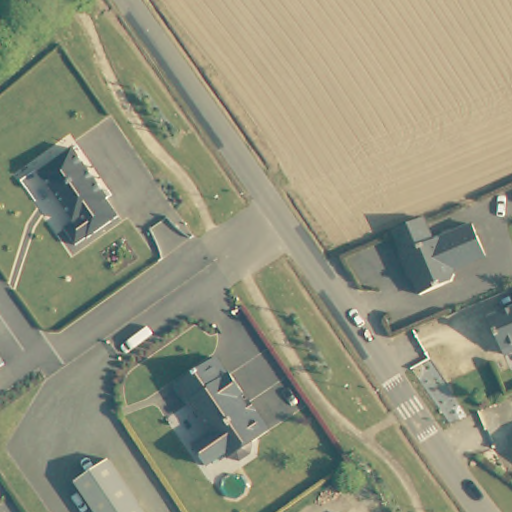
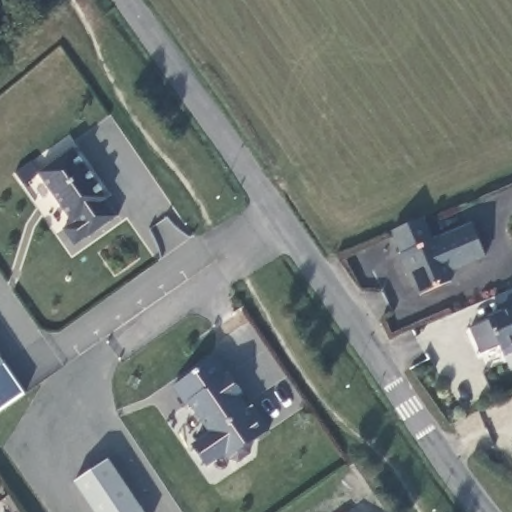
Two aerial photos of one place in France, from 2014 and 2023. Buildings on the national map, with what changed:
unchanged [(118,209),(73,241),(61,225),(72,217),(34,165),(70,144),(118,209)]
unchanged [(436,239),(475,223),(489,255),(455,269),(457,274),(454,281),(424,294),(414,270),(412,271),(404,254),(406,252),(396,229),(426,216),(436,239)]
unchanged [(488,320),(512,310),(512,353),(503,356),(488,320)]
unchanged [(217,354),(231,375),(233,373),(248,395),(244,399),(257,417),(262,415),(273,430),(253,444),(257,450),(237,463),(232,456),(211,467),(196,445),(218,430),(196,399),(191,402),(177,381),(217,354)]
unchanged [(2,359),(0,360),(0,356),(2,359)]
new [(22,392),(0,407),(0,361),(22,392)]
unchanged [(141,512),(96,512),(76,480),(108,460),(141,512)]

